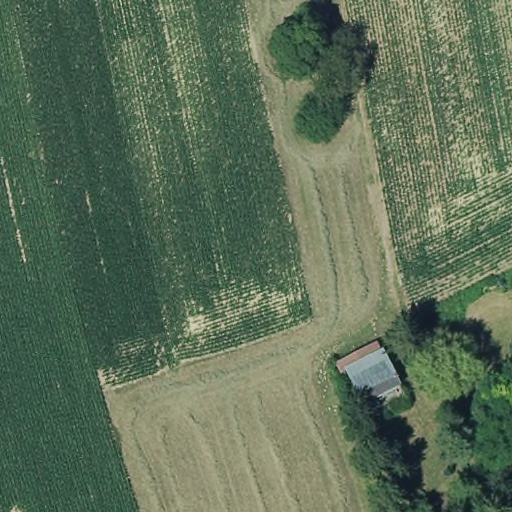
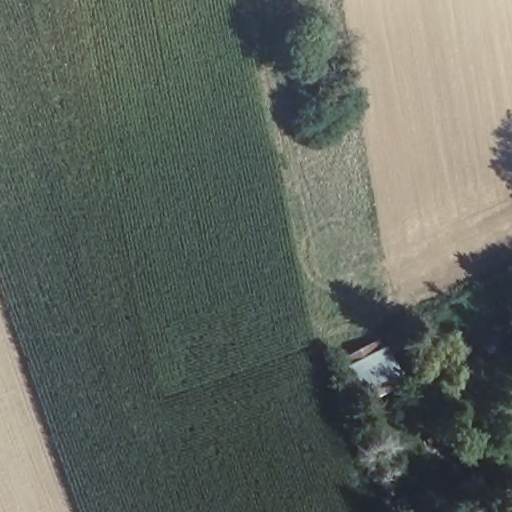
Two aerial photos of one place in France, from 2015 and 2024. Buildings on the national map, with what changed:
unchanged [(363,405),(342,353),(383,336),(405,389),(363,405)]

